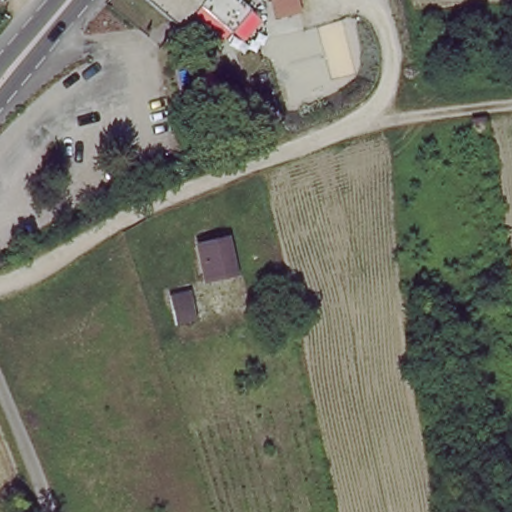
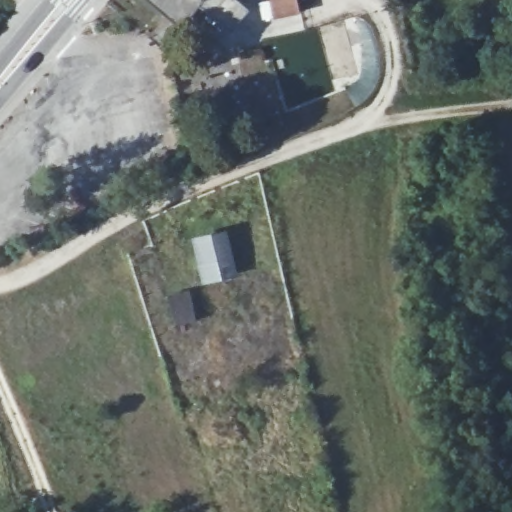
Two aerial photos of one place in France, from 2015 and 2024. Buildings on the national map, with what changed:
unchanged [(206,0),(218,0),(211,3),(206,0)]
unchanged [(283,14),(280,0),(306,0),(309,10),(283,14)]
unchanged [(235,274),(209,280),(200,243),(225,235),(235,274)]
unchanged [(199,314),(179,320),(170,291),(191,286),(199,314)]

